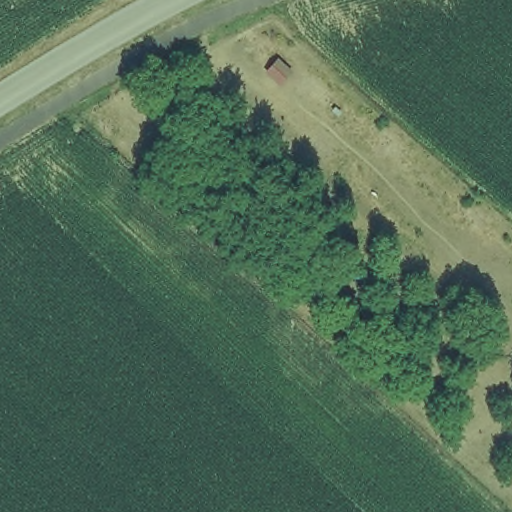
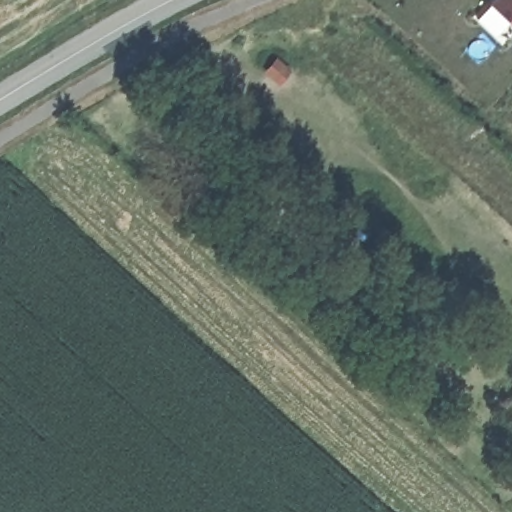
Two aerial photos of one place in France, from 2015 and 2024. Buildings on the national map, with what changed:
new [(512,0),(512,24),(493,6),(498,0),(512,0)]

